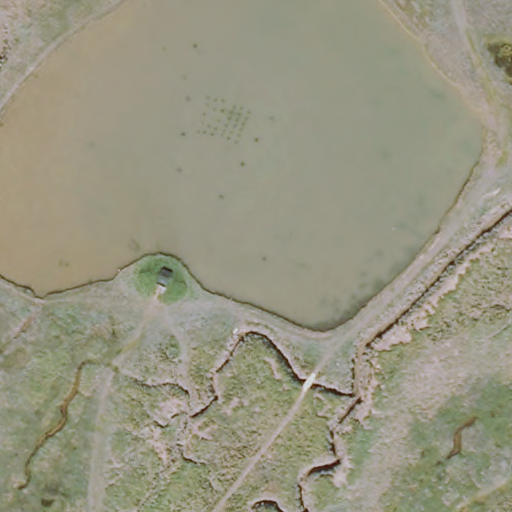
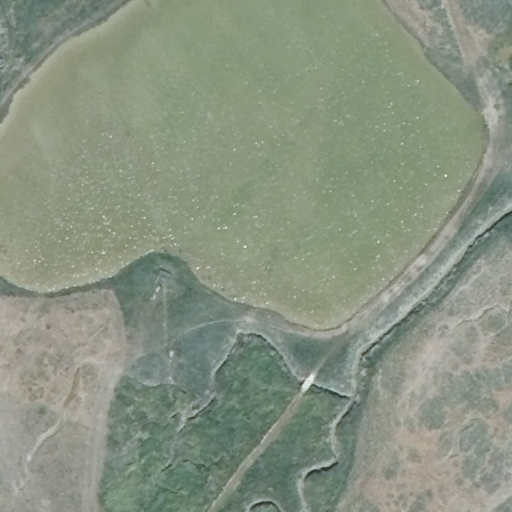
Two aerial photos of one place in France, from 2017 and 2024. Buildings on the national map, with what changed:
unchanged [(167,283),(154,282),(155,272),(169,272),(167,283)]

